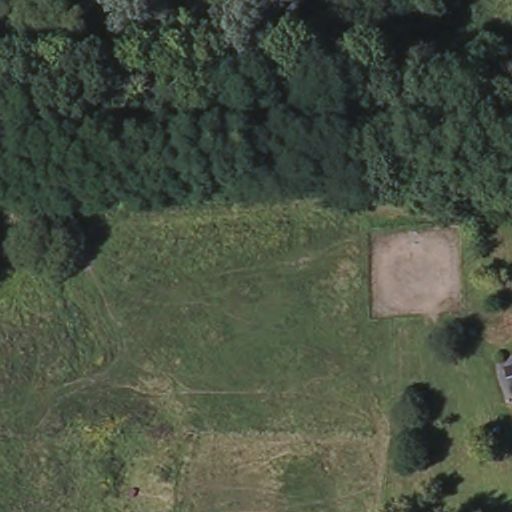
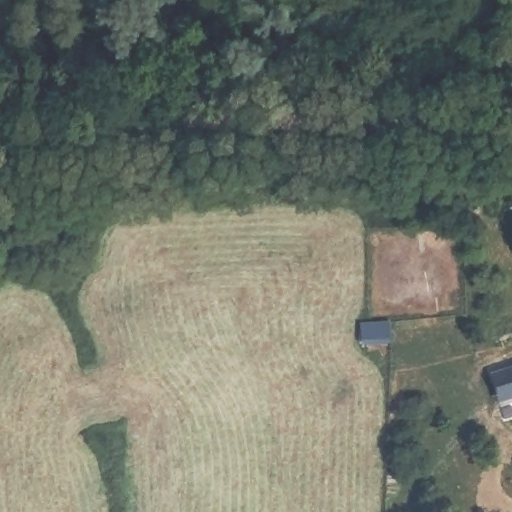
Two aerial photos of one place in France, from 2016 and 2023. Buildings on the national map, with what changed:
unchanged [(509,402),(500,372),(512,368),(512,401),(509,402)]

